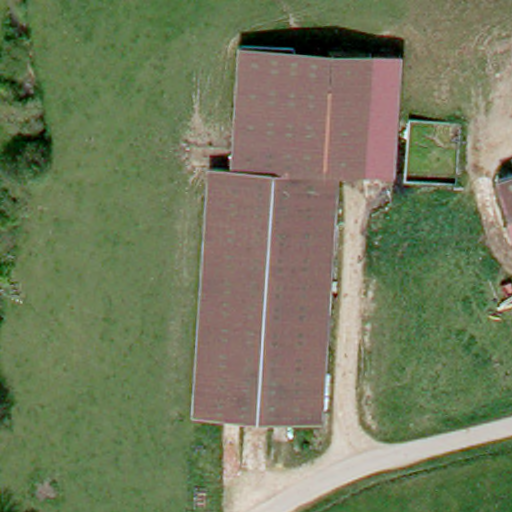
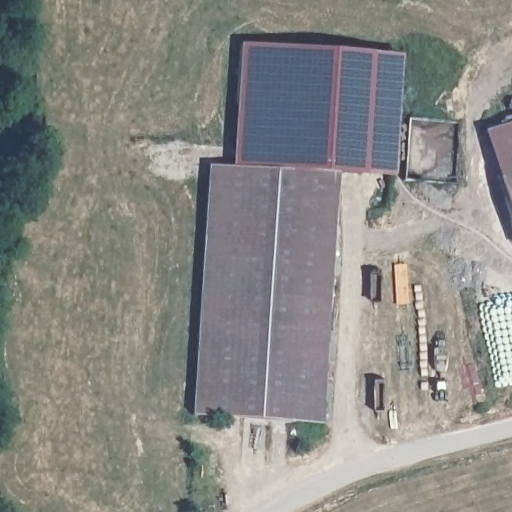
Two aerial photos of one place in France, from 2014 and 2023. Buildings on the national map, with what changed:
unchanged [(243,44),(375,52),(368,174),(343,172),(234,162),(243,44)]
unchanged [(401,54),(395,174),(368,174),(375,52),(401,54)]
new [(482,131),(512,122),(512,172),(495,176),(482,131)]
unchanged [(234,162),(343,172),(325,421),(197,412),(215,161),(234,162)]
unchanged [(512,232),(495,176),(512,172),(512,232)]

